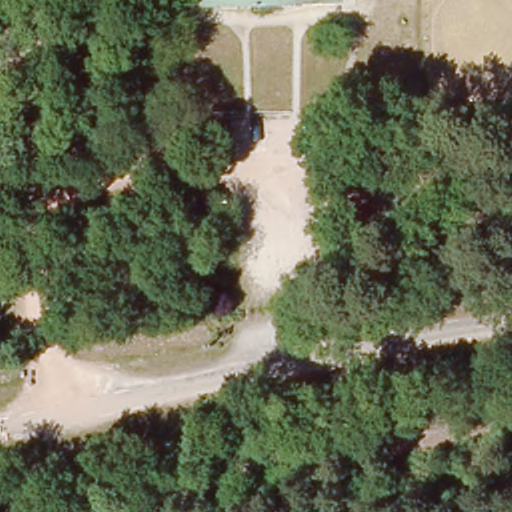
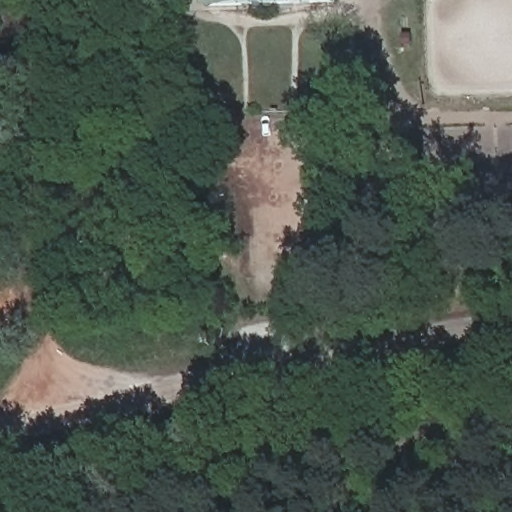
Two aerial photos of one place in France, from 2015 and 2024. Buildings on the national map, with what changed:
unchanged [(209,6),(209,0),(338,0),(338,3),(209,6)]

